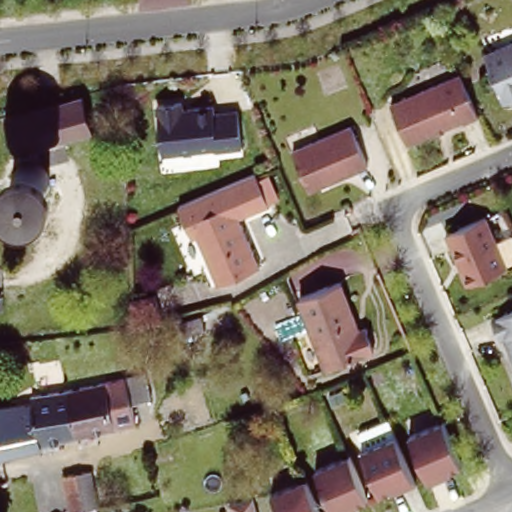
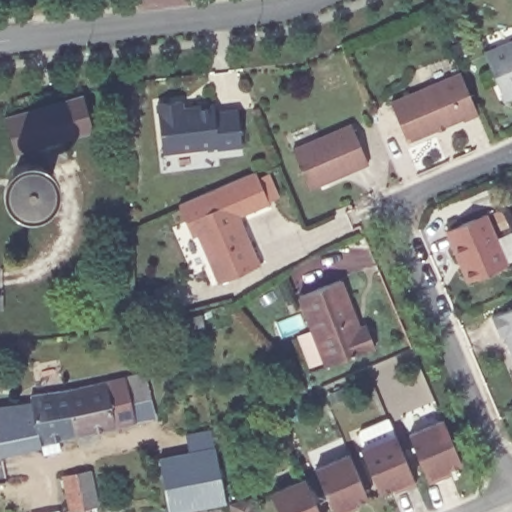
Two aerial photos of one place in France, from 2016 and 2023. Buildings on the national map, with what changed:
unchanged [(484,47),(512,37),(512,91),(505,94),(497,75),(484,47)]
unchanged [(479,114),(464,120),(464,118),(409,140),(394,101),(462,72),(479,114)]
unchanged [(104,126),(16,151),(4,114),(93,89),(104,126)]
unchanged [(243,142),(218,145),(218,142),(164,151),(158,104),(183,100),(185,107),(215,102),(217,110),(238,106),(243,142)]
unchanged [(369,163),(309,188),(294,150),(354,125),(369,163)]
unchanged [(123,199),(113,200),(112,152),(123,150),(123,199)]
unchanged [(186,217),(179,198),(255,165),(269,199),(240,210),(258,259),(218,275),(198,229),(193,232),(186,217)]
unchanged [(508,262),(469,278),(448,227),(486,212),(508,262)]
unchanged [(363,325),(371,322),(379,344),(329,364),(303,296),(344,280),(363,325)]
unchanged [(133,331),(133,309),(133,303),(160,295),(162,301),(168,323),(151,328),(133,331)]
unchanged [(497,333),(489,315),(512,305),(512,356),(503,332),(497,333)]
unchanged [(136,423),(94,432),(95,440),(79,442),(78,440),(78,435),(66,387),(139,371),(146,370),(153,400),(143,401),(133,403),(136,423)]
unchanged [(78,435),(58,440),(58,447),(43,450),(41,443),(0,451),(0,410),(35,400),(33,393),(66,387),(78,435)]
unchanged [(439,475),(425,481),(405,433),(438,420),(456,461),(444,467),(445,472),(439,475)]
new [(186,434),(211,429),(214,447),(225,503),(177,512),(169,512),(158,457),(189,451),(186,434)]
unchanged [(388,486),(374,492),(354,448),(389,435),(411,485),(397,490),(391,492),(388,486)]
unchanged [(344,511),(343,512),(329,512),(309,468),(343,454),(361,496),(349,501),(351,508),(344,511)]
unchanged [(69,510),(63,473),(76,471),(88,469),(95,505),(83,507),(69,510)]
unchanged [(266,496),(299,482),(311,512),(273,512),(266,496)]
new [(251,496),(256,512),(231,512),(228,502),(251,496)]

